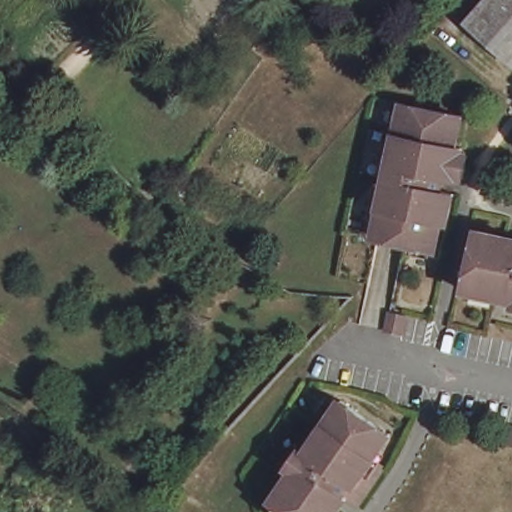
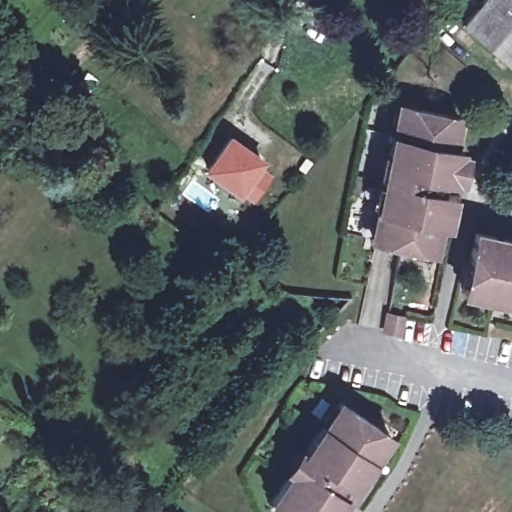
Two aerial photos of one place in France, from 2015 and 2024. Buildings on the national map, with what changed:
unchanged [(490,0),(512,0),(512,68),(466,28),(490,0)]
unchanged [(371,238),(383,180),(393,135),(399,105),(457,117),(451,147),(458,149),(451,181),(438,179),(436,190),(450,194),(443,225),(437,224),(431,251),(401,245),(375,239),(371,238)]
new [(230,133),(265,159),(260,165),(272,174),(251,201),(205,169),(230,133)]
unchanged [(474,232),(505,239),(512,240),(512,301),(462,290),(474,232)]
unchanged [(399,333),(383,330),(386,313),(402,317),(399,333)]
unchanged [(286,476),(320,426),(337,400),(387,434),(370,459),(382,466),(355,505),(344,497),(334,512),(286,512),(270,500),(286,476)]
unchanged [(511,427),(512,428),(512,444),(508,443),(511,427)]
unchanged [(131,491),(160,510),(158,512),(143,512),(125,499),(131,491)]

